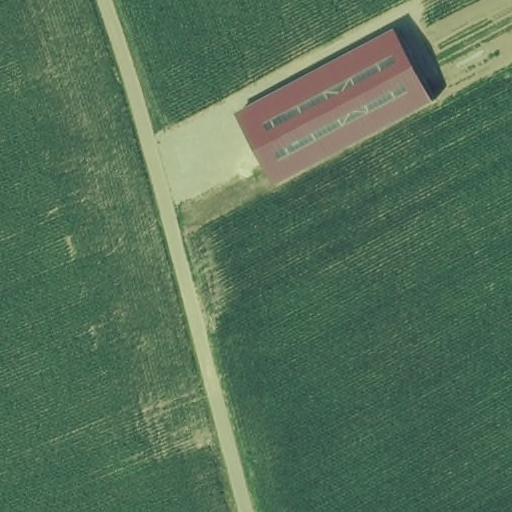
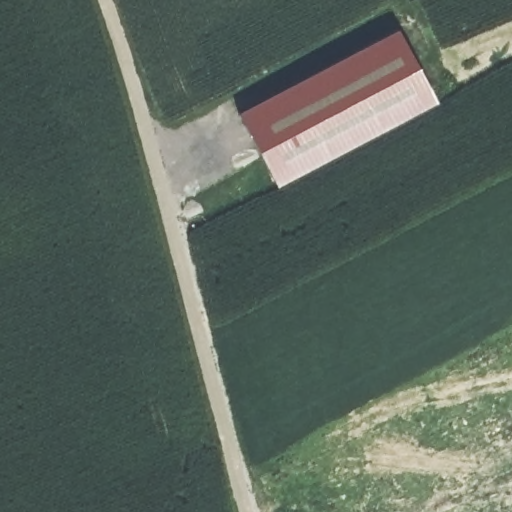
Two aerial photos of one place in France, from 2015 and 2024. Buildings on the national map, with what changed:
unchanged [(398,26),(435,100),(277,184),(238,111),(398,26)]

